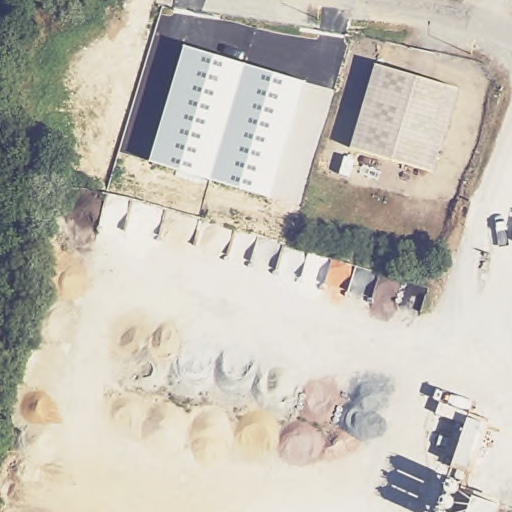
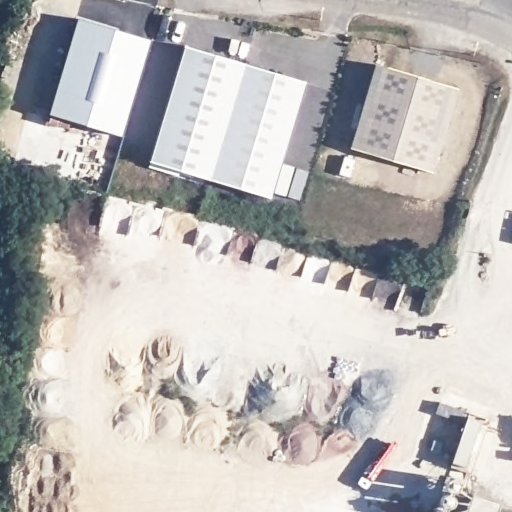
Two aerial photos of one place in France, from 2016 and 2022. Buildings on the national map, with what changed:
new [(71,21),(145,43),(118,137),(44,116),(71,21)]
unchanged [(147,164),(184,45),(303,83),(270,199),(147,164)]
unchanged [(458,91),(433,175),(351,150),(376,66),(458,91)]
unchanged [(478,414),(466,463),(451,459),(463,409),(478,414)]

